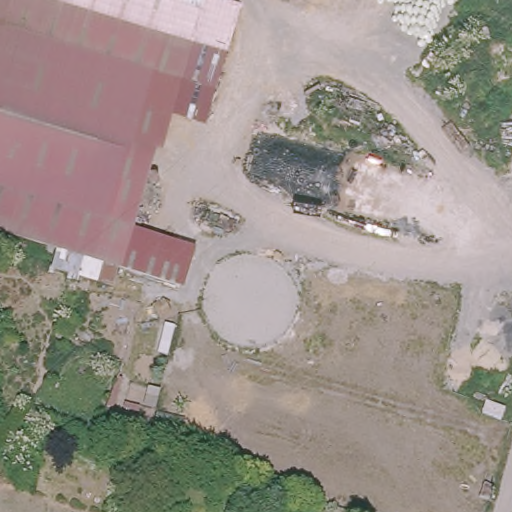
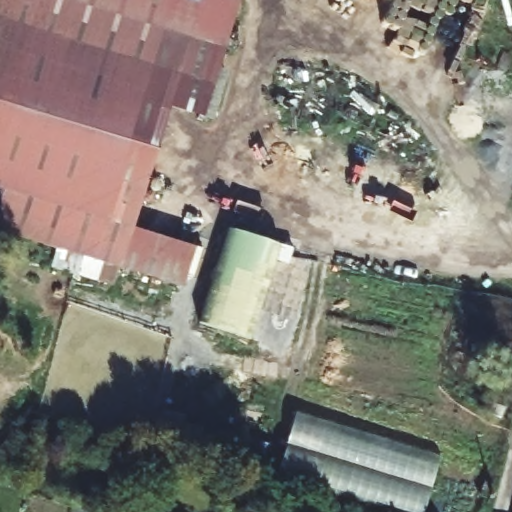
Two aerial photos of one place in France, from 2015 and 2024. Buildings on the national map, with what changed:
unchanged [(120,270),(105,265),(99,285),(50,270),(55,251),(0,233),(0,0),(81,0),(192,35),(120,270)]
unchanged [(170,107),(192,35),(81,0),(238,0),(241,1),(206,119),(170,107)]
unchanged [(134,227),(189,244),(177,286),(120,270),(134,227)]
new [(252,340),(200,323),(229,229),(280,245),(252,340)]
new [(423,512),(398,512),(277,475),(297,412),(441,455),(423,512)]

